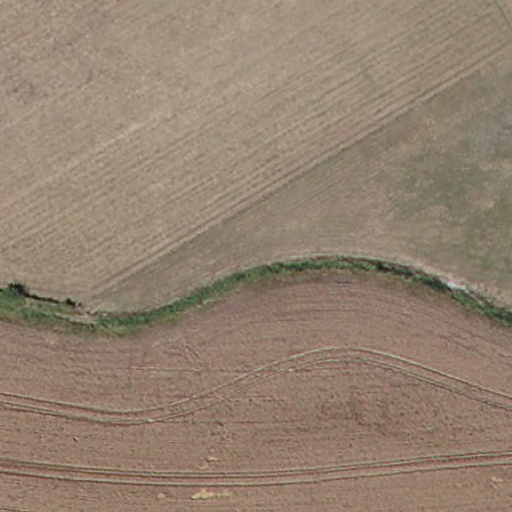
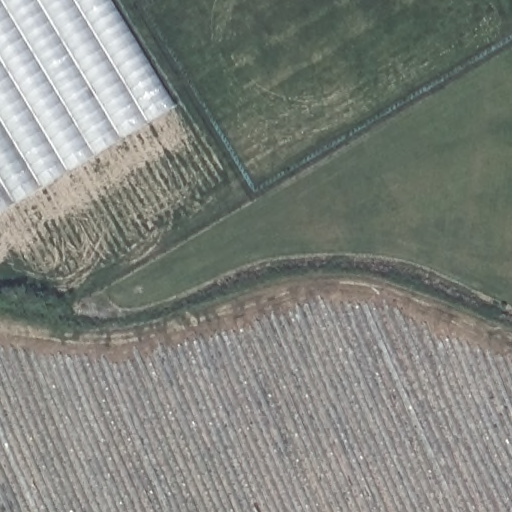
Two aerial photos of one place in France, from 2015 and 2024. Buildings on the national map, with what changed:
new [(0,212),(0,0),(114,0),(177,105),(0,212)]

